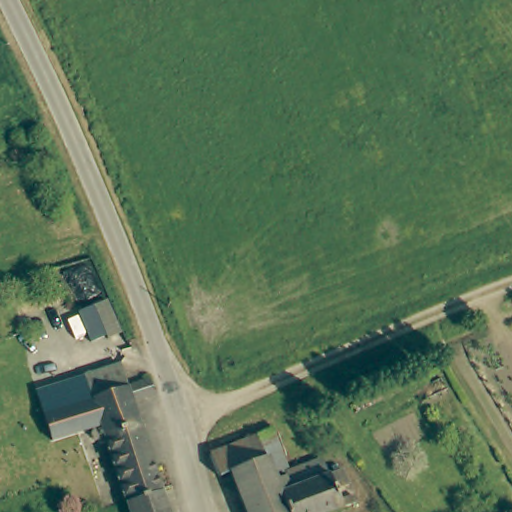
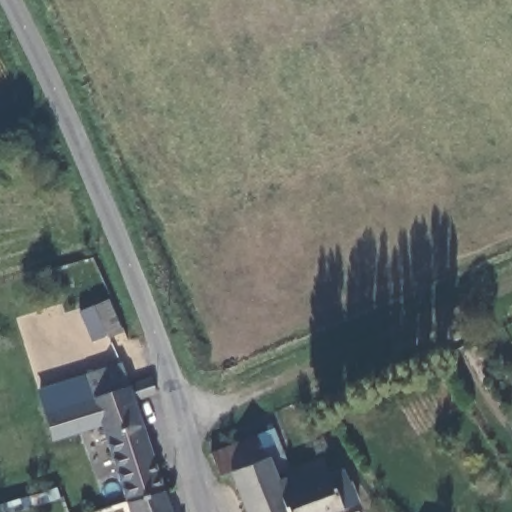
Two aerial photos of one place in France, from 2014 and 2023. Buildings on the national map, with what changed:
unchanged [(139,387),(157,381),(160,380),(164,395),(144,402),(172,490),(136,503),(115,440),(104,443),(98,432),(89,436),(86,428),(60,435),(53,413),(48,397),(63,393),(62,391),(96,380),(132,368),(139,387)]
unchanged [(287,467),(276,470),(282,488),(290,485),(286,470),(323,457),(328,470),(334,485),(351,480),(358,499),(322,512),(247,512),(231,471),(229,465),(266,452),(258,431),(273,426),(287,467)]
unchanged [(212,450),(258,431),(266,452),(229,465),(231,471),(219,476),(212,450)]
unchanged [(172,490),(179,512),(139,512),(136,503),(172,490)]

